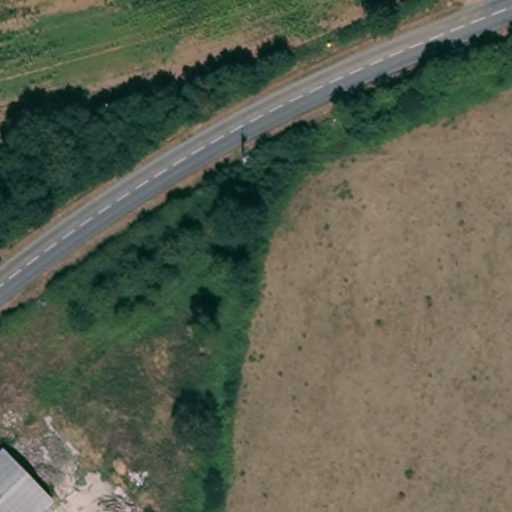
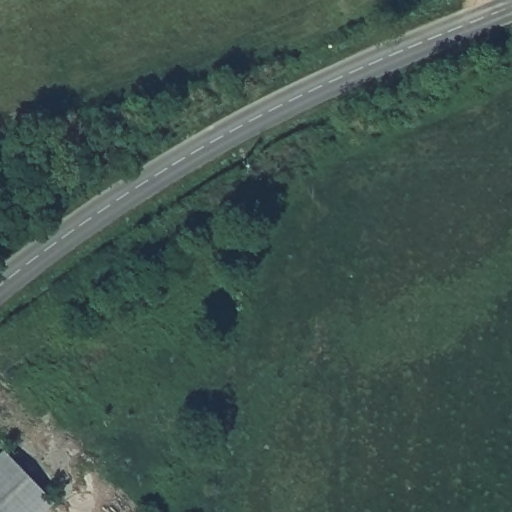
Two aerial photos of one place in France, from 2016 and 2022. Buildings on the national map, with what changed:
unchanged [(59,508),(54,512),(0,512),(0,466),(13,455),(59,508)]

